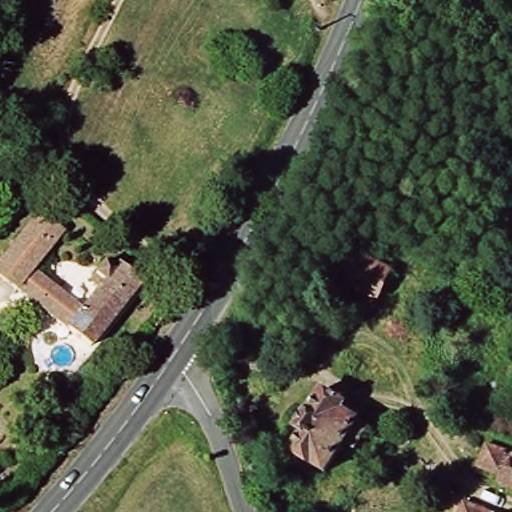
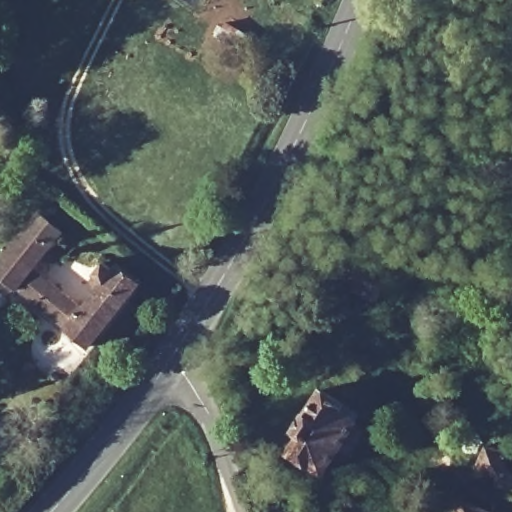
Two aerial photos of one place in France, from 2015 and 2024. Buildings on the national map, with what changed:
unchanged [(84,307),(106,283),(99,276),(110,263),(115,265),(119,260),(147,281),(92,348),(10,281),(44,241),(56,226),(81,247),(68,261),(53,279),(84,307)]
unchanged [(388,273),(379,295),(341,275),(351,254),(388,273)]
unchanged [(296,428),(314,391),(347,403),(343,414),(363,425),(352,448),(340,443),(326,472),(313,463),(308,468),(290,458),(300,434),(296,428)]
unchanged [(499,474),(479,471),(490,450),(512,456),(512,488),(497,486),(499,474)]
unchanged [(484,512),(461,512),(465,504),(484,512)]

